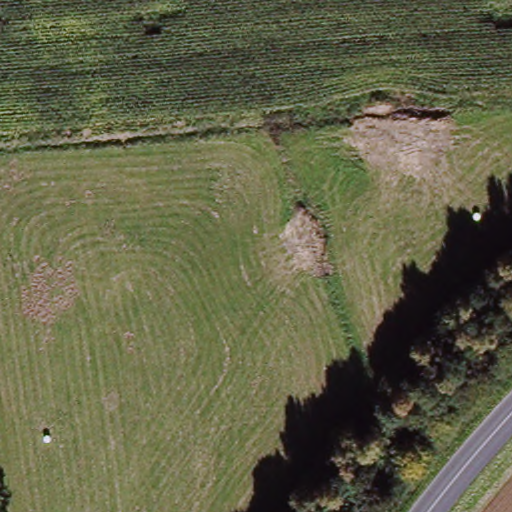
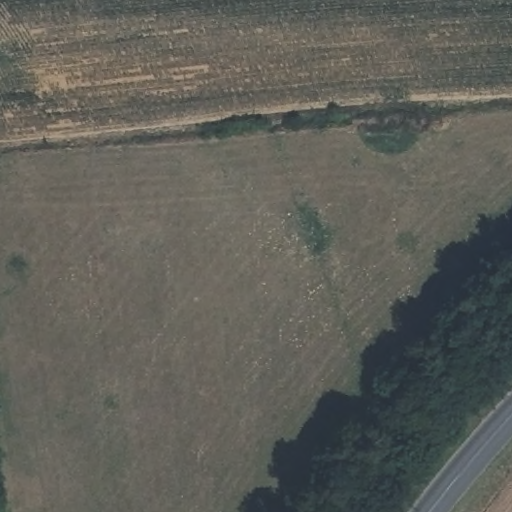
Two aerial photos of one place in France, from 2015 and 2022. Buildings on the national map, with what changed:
[]

